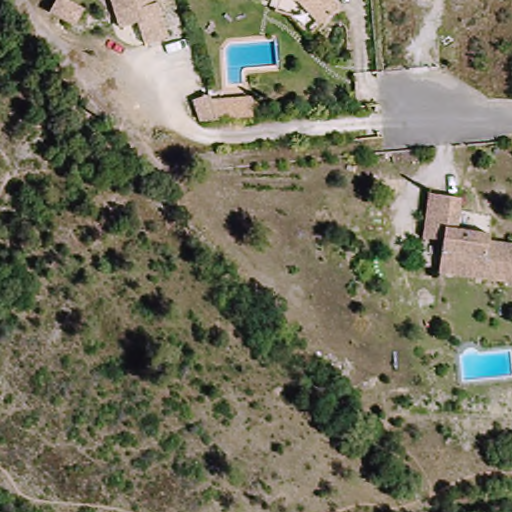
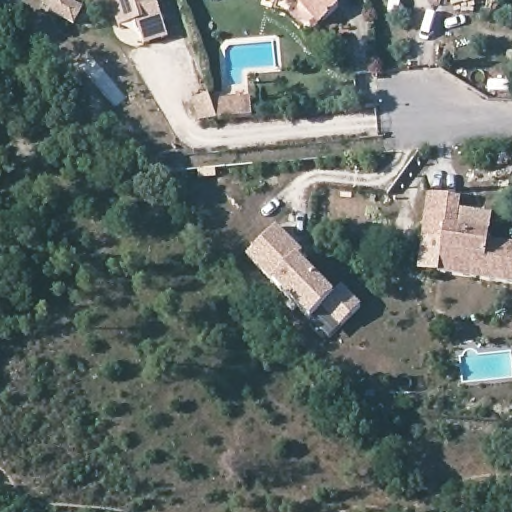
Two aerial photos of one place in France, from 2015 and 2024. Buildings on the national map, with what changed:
unchanged [(69,0),(86,8),(77,26),(50,12),(56,0),(69,0)]
unchanged [(143,40),(136,23),(121,25),(112,0),(160,0),(172,31),(143,40)]
unchanged [(321,26),(293,0),(333,0),(340,9),(321,26)]
unchanged [(193,95),(211,92),(213,98),(252,93),(255,114),(217,118),(197,116),(193,95)]
unchanged [(452,234),(485,238),(485,244),(512,248),(512,284),(435,275),(437,245),(420,242),(421,232),(426,201),(456,205),(452,234)]
new [(306,255),(297,261),(332,295),(341,287),(362,307),(342,326),(323,307),(310,320),(272,281),(246,257),(278,227),(306,255)]

